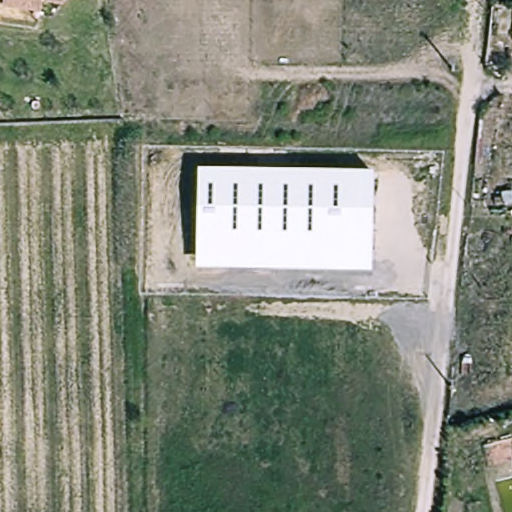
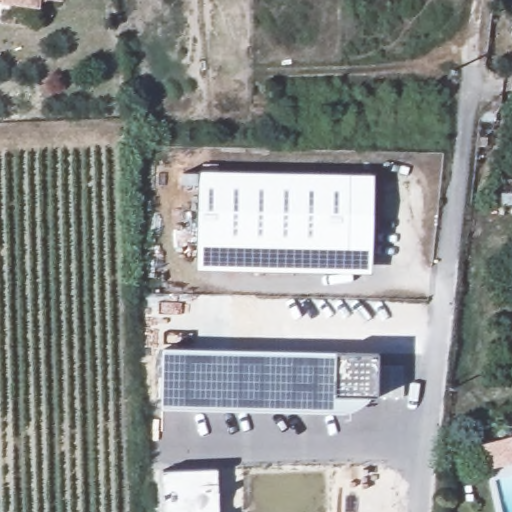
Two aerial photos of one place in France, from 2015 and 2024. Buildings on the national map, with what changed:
unchanged [(45,4),(16,0),(46,0),(45,4)]
unchanged [(196,271),(199,171),(374,175),(371,273),(196,271)]
new [(163,349),(336,353),(379,355),(378,397),(334,397),(333,412),(163,409),(163,349)]
new [(482,445),(512,437),(512,463),(488,470),(482,445)]
new [(218,470),(220,512),(164,512),(163,472),(218,470)]

